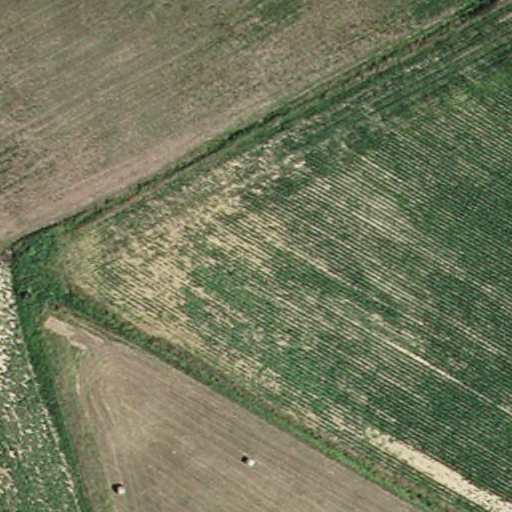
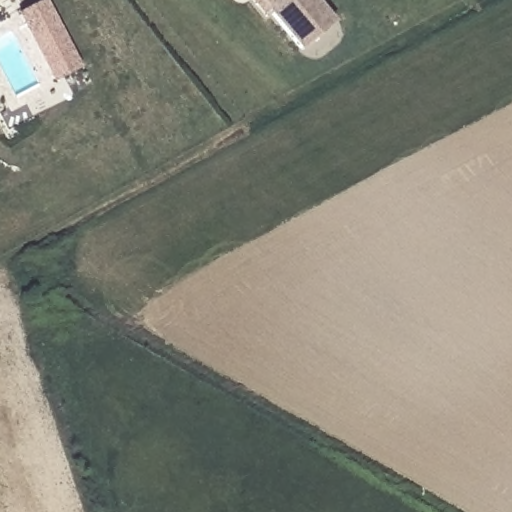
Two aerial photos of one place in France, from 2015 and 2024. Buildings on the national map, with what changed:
new [(81,68),(54,83),(17,14),(45,0),(46,0),(81,68)]
new [(336,25),(302,53),(272,14),(265,19),(250,0),(316,0),(336,25)]

